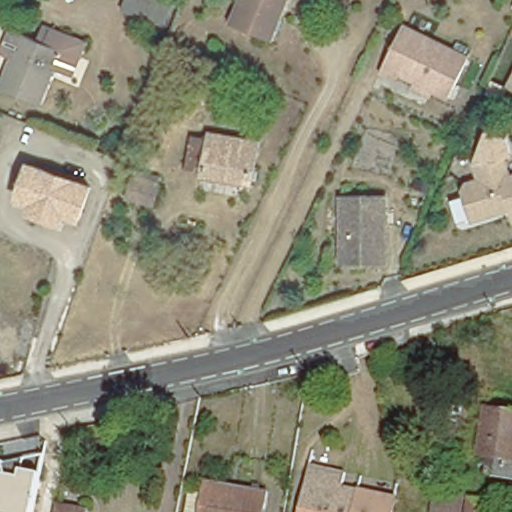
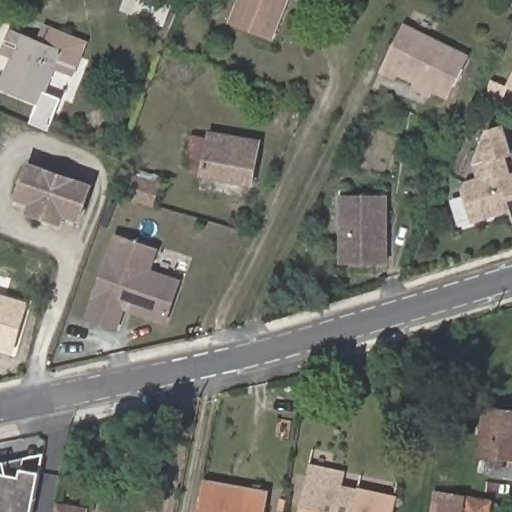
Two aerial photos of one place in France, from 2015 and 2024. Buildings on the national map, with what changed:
unchanged [(156,24),(127,14),(131,0),(163,0),(156,24)]
unchanged [(269,45),(230,28),(241,0),(287,0),(269,45)]
unchanged [(412,87),(415,82),(398,75),(396,79),(381,72),(403,24),(468,56),(448,98),(434,92),(432,97),(412,87)]
unchanged [(0,90),(12,58),(2,54),(12,30),(40,41),(46,28),(54,31),(85,44),(72,76),(54,69),(45,91),(62,99),(50,131),(31,124),(38,107),(0,92),(0,90)]
unchanged [(512,75),(512,89),(507,86),(512,75)]
unchanged [(260,142),(252,185),(204,177),(206,171),(179,167),(184,138),(211,143),(212,134),(260,142)]
unchanged [(508,211),(472,222),(462,191),(467,181),(477,178),(473,163),(506,153),(512,173),(512,222),(508,211)]
unchanged [(34,203),(18,198),(30,166),(41,170),(40,174),(77,186),(78,182),(89,186),(79,218),(65,213),(62,223),(37,215),(31,213),(34,203)]
unchanged [(126,200),(132,178),(134,167),(162,175),(159,185),(154,205),(126,200)]
unchanged [(386,196),(386,263),(342,263),(341,196),(386,196)]
new [(86,321),(114,234),(159,249),(152,269),(182,279),(167,325),(125,310),(118,332),(86,321)]
new [(15,355),(0,351),(0,295),(29,303),(15,355)]
unchanged [(485,471),(486,455),(477,455),(486,408),(512,412),(512,476),(485,471)]
new [(24,459),(22,469),(41,472),(34,512),(0,512),(0,464),(7,462),(24,459)]
unchanged [(318,485),(321,472),(342,477),(341,489),(386,498),(394,499),(392,512),(298,512),(305,482),(318,485)]
unchanged [(203,494),(204,491),(205,484),(249,491),(268,495),(267,502),(265,512),(186,512),(190,492),(203,494)]
unchanged [(463,512),(434,512),(437,493),(466,497),(463,512)]
unchanged [(467,512),(470,498),(491,501),(489,512),(467,512)]
unchanged [(85,511),(84,512),(59,512),(60,507),(85,511)]

